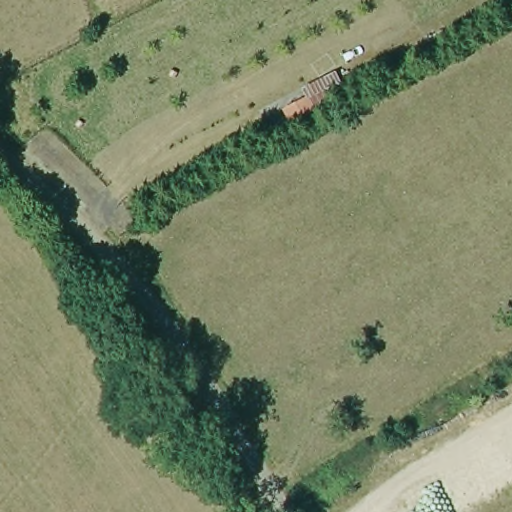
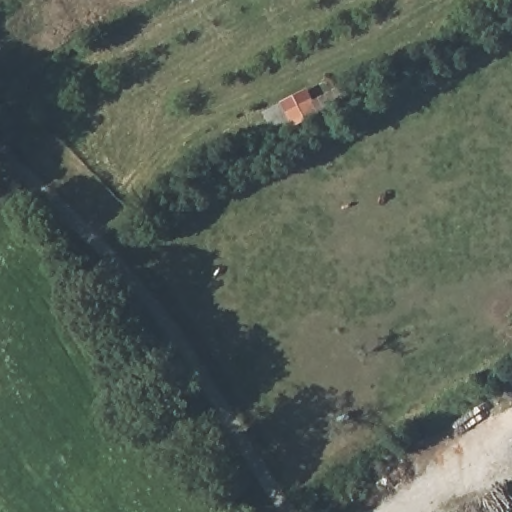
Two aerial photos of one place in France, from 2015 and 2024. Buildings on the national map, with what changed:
unchanged [(319,109),(322,114),(292,128),(281,107),(326,85),(334,101),(319,109)]

